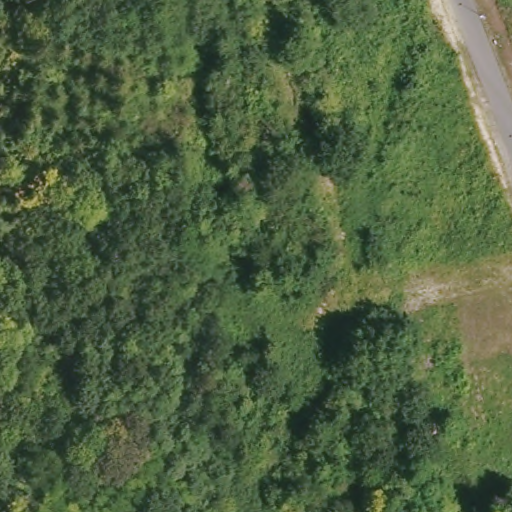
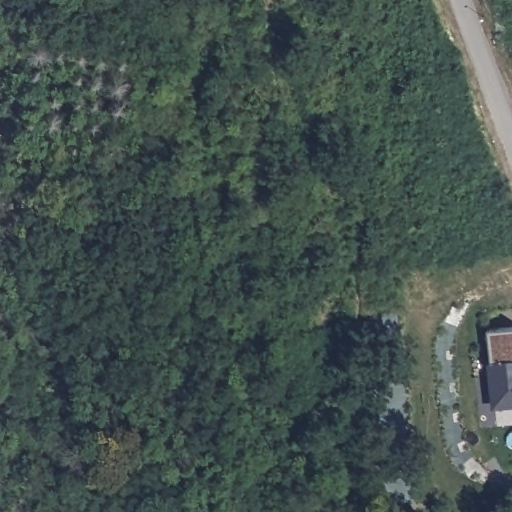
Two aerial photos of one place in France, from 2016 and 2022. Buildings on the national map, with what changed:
new [(495,427),(485,332),(512,329),(512,425),(495,427)]

